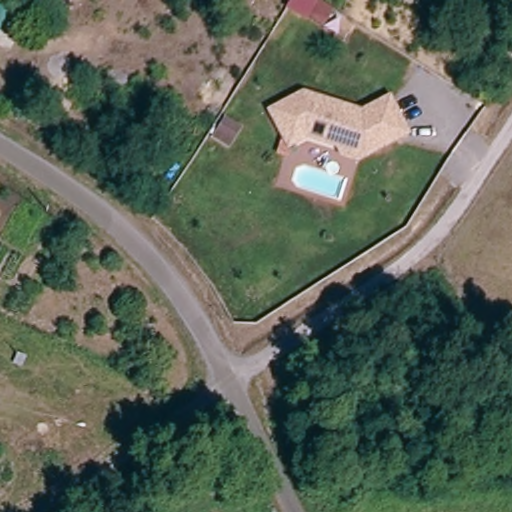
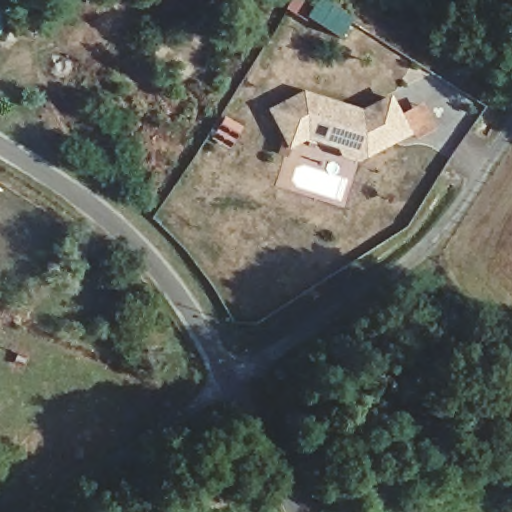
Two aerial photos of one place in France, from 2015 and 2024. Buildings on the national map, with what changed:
unchanged [(303,25),(285,13),(294,0),(305,0),(315,7),(303,25)]
unchanged [(0,17),(0,12),(2,14),(0,17)]
unchanged [(342,154),(337,144),(330,142),(306,135),(288,144),(271,109),(303,92),(362,110),(390,95),(407,130),(363,154),(355,157),(342,154)]
unchanged [(232,132),(225,144),(212,135),(220,125),(232,132)]

